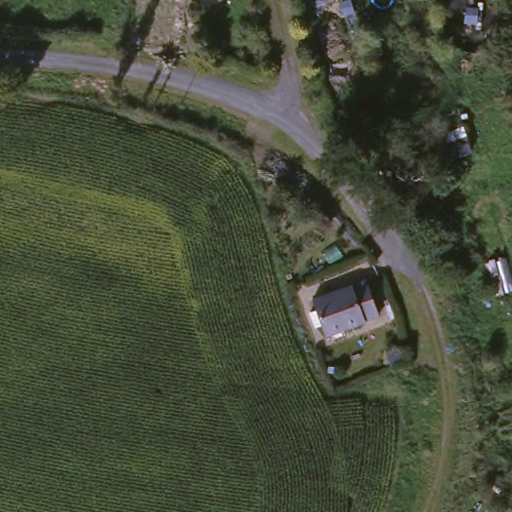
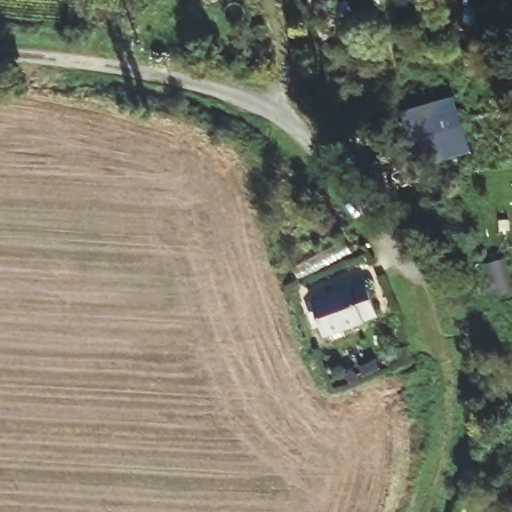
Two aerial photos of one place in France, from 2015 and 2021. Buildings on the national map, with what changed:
unchanged [(188,0),(199,0),(189,3),(188,0)]
new [(419,165),(403,111),(456,96),(471,153),(419,165)]
unchanged [(371,321),(324,336),(314,304),(362,288),(371,321)]

